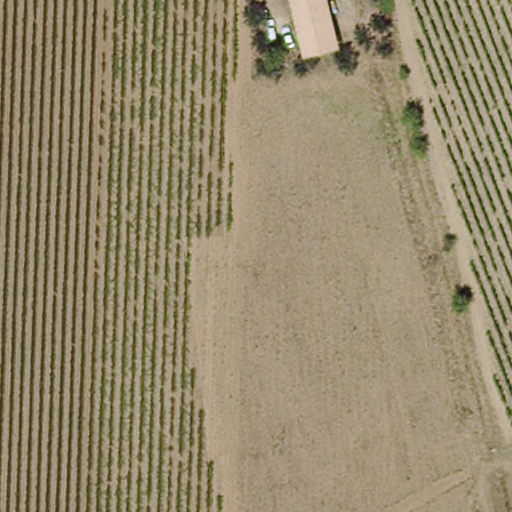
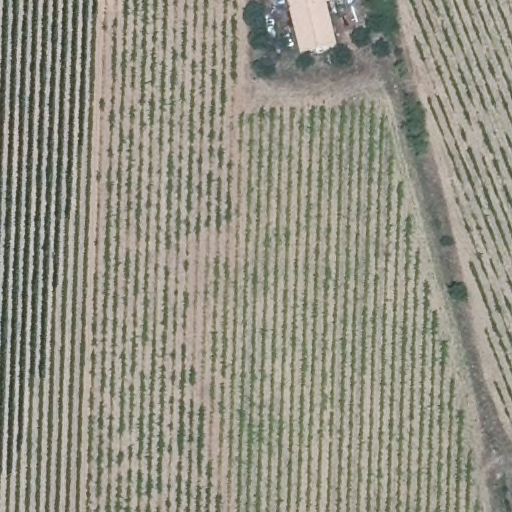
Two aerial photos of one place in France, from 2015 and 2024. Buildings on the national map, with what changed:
unchanged [(323,0),(333,39),(335,50),(301,60),(301,57),(286,0),(323,0)]

